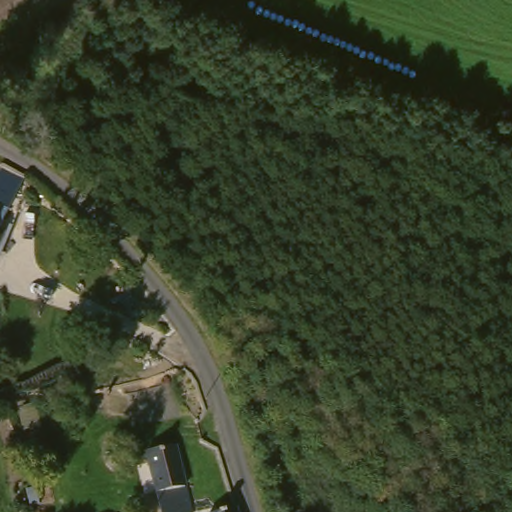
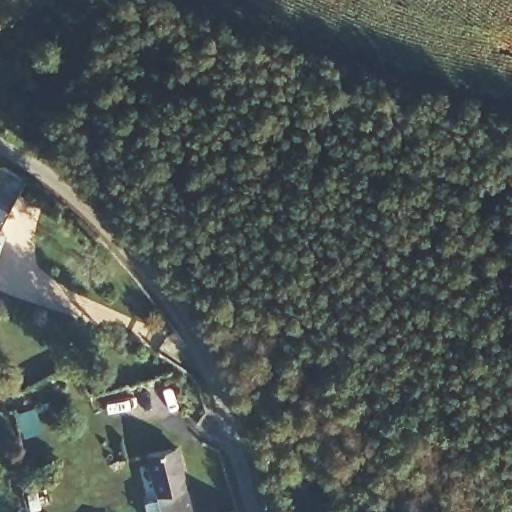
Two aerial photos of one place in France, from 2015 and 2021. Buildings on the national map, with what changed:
unchanged [(4,222),(1,229),(0,228),(0,174),(4,166),(26,178),(4,222)]
unchanged [(5,231),(0,243),(0,228),(1,229),(5,231)]
unchanged [(197,390),(204,416),(188,421),(179,397),(197,390)]
unchanged [(142,452),(173,442),(195,506),(174,512),(161,512),(142,452)]
unchanged [(235,503),(238,512),(204,512),(235,503)]

